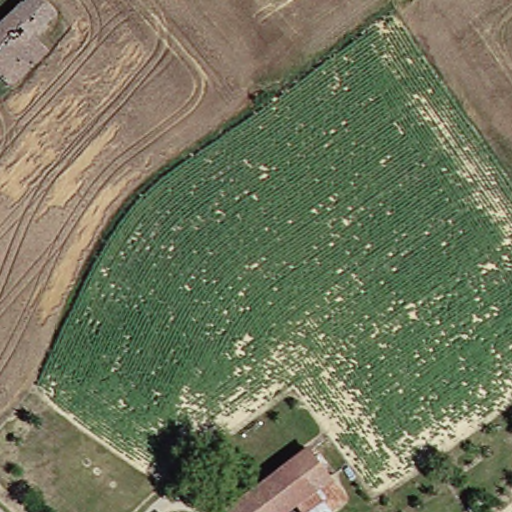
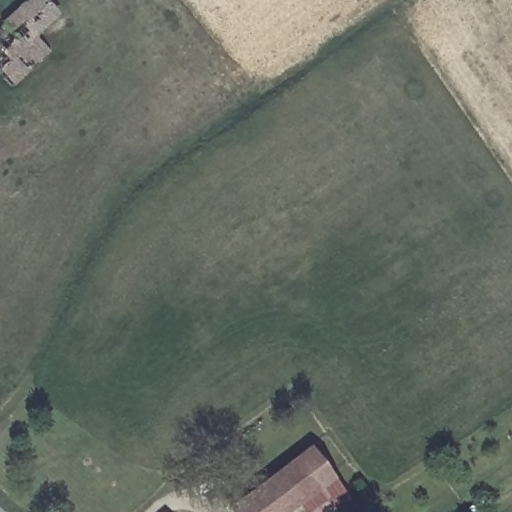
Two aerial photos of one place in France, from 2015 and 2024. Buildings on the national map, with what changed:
unchanged [(39,30),(53,49),(13,86),(0,71),(0,27),(27,0),(49,0),(58,10),(39,30)]
unchanged [(286,512),(233,512),(309,448),(330,476),(311,492),(286,512)]

